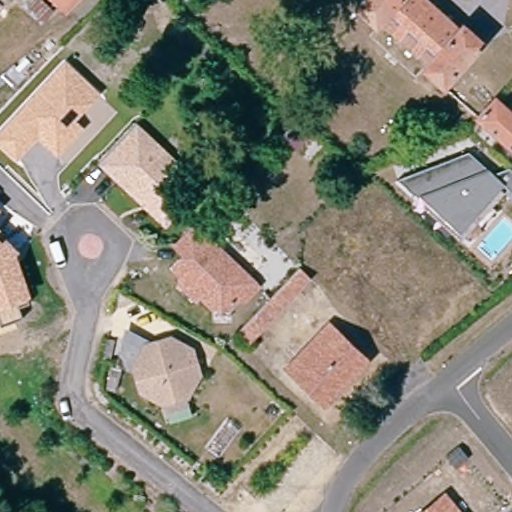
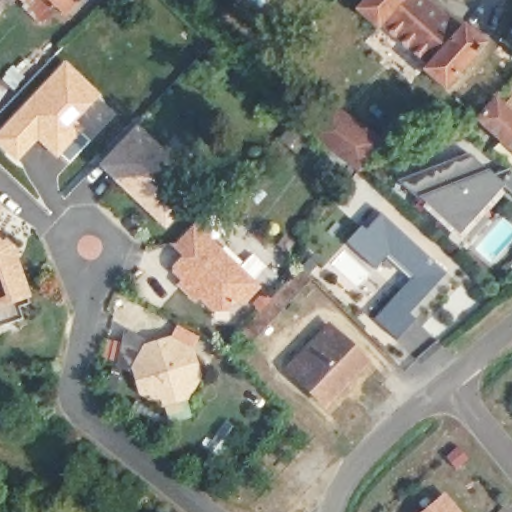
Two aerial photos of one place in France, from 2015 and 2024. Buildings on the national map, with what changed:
unchanged [(49,0),(70,0),(60,10),(49,0)]
unchanged [(365,0),(425,0),(458,30),(462,26),(483,44),(443,89),(424,70),(427,64),(387,28),(380,24),(375,28),(356,10),(365,0)]
unchanged [(218,63),(209,73),(201,66),(211,56),(218,63)]
unchanged [(60,61),(91,90),(66,117),(75,125),(51,150),(32,131),(10,154),(0,144),(0,125),(60,61)]
unchanged [(512,120),(512,153),(474,119),(490,100),(512,120)]
new [(328,106),(378,144),(373,150),(339,125),(322,147),(306,135),(328,106)]
new [(339,125),(373,150),(356,172),(322,147),(339,125)]
unchanged [(157,147),(180,170),(180,176),(180,177),(169,188),(169,191),(184,206),(166,225),(112,175),(100,163),(116,146),(135,126),(157,147)]
unchanged [(418,200),(397,181),(469,152),(493,175),(509,168),(512,170),(512,194),(504,186),(498,193),(486,206),(461,234),(422,199),(418,200)]
unchanged [(1,210),(0,211),(0,208),(1,210)]
new [(357,226),(362,231),(378,214),(443,274),(406,314),(412,320),(393,340),(370,320),(409,277),(385,255),(372,270),(343,243),(357,226)]
unchanged [(231,320),(218,320),(218,310),(203,297),(199,301),(183,286),(187,281),(175,270),(188,257),(175,245),(180,245),(197,226),(248,275),(262,288),(248,303),(243,300),(234,310),(234,319),(231,320)]
unchanged [(1,229),(0,230),(0,227),(1,229)]
unchanged [(2,241),(7,236),(19,247),(16,251),(32,298),(17,303),(21,316),(3,323),(0,315),(0,239),(2,241)]
unchanged [(269,277),(280,266),(291,277),(280,288),(269,277)]
unchanged [(253,338),(244,331),(302,270),(311,278),(253,338)]
unchanged [(365,362),(323,406),(286,371),(328,326),(365,362)]
unchanged [(174,418),(168,398),(166,402),(143,390),(145,386),(139,367),(135,365),(147,342),(150,344),(169,338),(171,334),(194,346),(193,350),(199,368),(202,371),(191,394),(187,392),(193,411),(174,418)]
new [(223,421),(236,431),(215,458),(203,448),(223,421)]
unchanged [(460,512),(424,512),(446,495),(460,512)]

